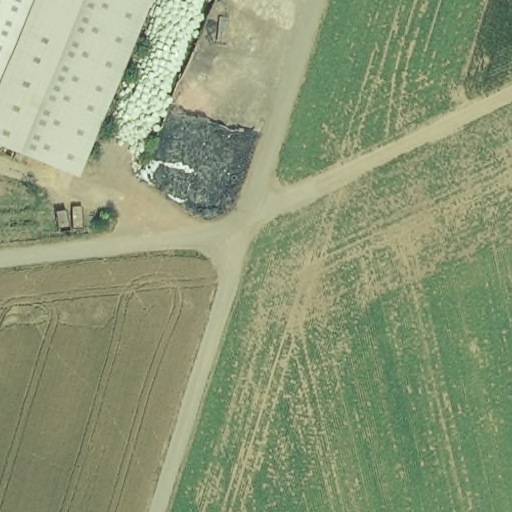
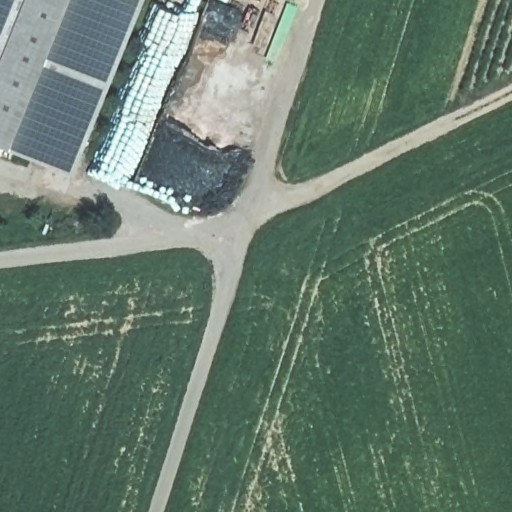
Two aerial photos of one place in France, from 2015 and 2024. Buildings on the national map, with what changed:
unchanged [(0,0),(31,0),(0,75),(0,0)]
unchanged [(0,148),(0,75),(31,0),(152,0),(84,182),(0,148)]

